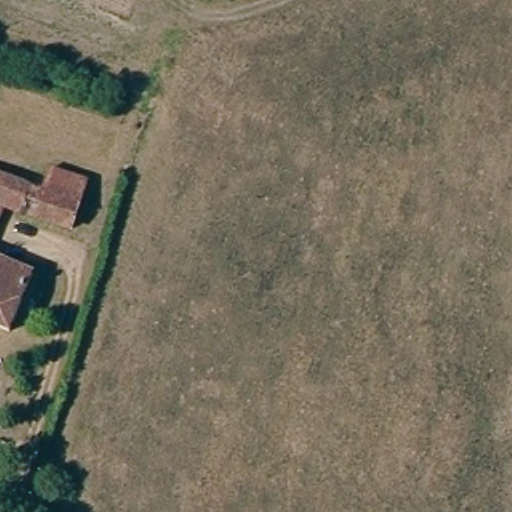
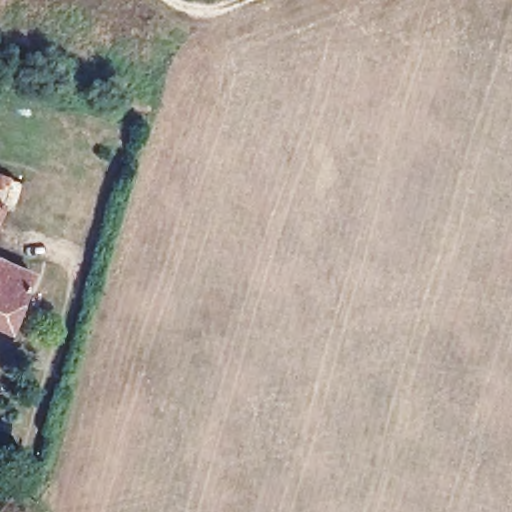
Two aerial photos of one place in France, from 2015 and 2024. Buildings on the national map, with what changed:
demolished [(42,192),(46,182),(50,171),(88,183),(71,233),(14,214),(23,185),(42,192)]
unchanged [(14,214),(5,211),(0,221),(0,178),(23,185),(14,214)]
unchanged [(0,262),(32,275),(9,332),(0,329),(0,262)]

